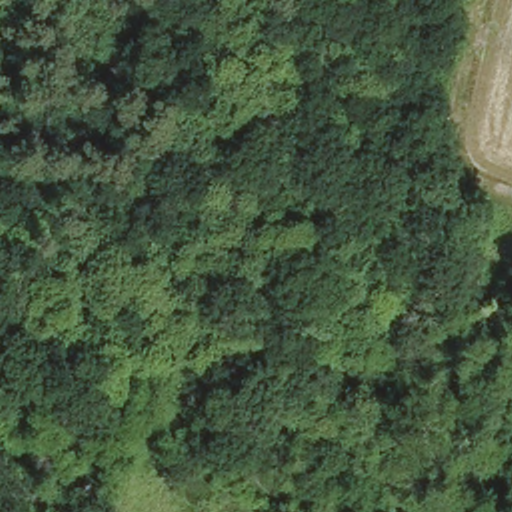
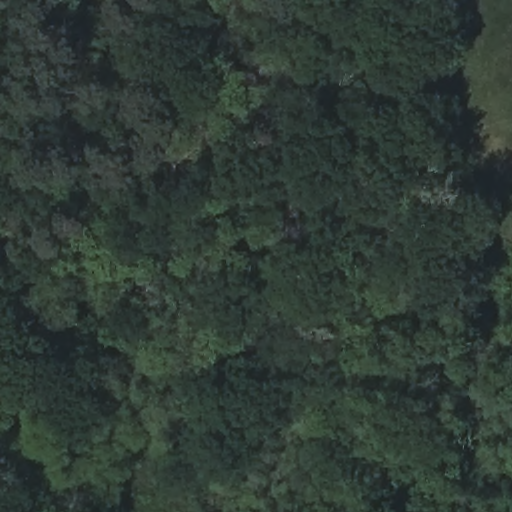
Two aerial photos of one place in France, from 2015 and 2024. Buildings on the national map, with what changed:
[]

